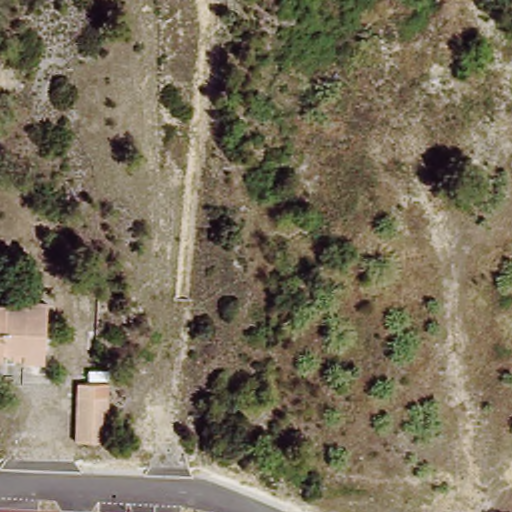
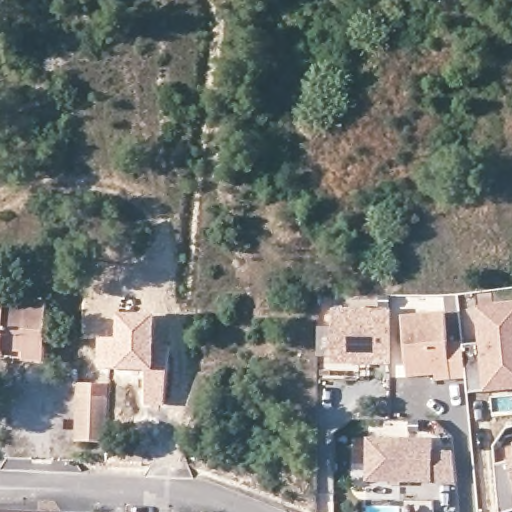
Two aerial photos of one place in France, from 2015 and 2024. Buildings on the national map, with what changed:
unchanged [(20,299),(41,301),(36,358),(11,356),(0,355),(0,305),(17,306),(20,299)]
new [(468,394),(467,378),(437,382),(437,375),(407,377),(403,317),(444,312),(448,347),(480,346),(476,309),(512,305),(512,390),(468,394)]
new [(335,364),(335,309),(391,309),(391,367),(335,364)]
new [(98,335),(113,336),(115,313),(156,314),(154,370),(166,371),(163,406),(143,405),(144,373),(96,368),(98,335)]
unchanged [(101,442),(99,447),(71,444),(75,397),(104,398),(101,442)]
new [(368,439),(434,441),(434,453),(454,454),(453,485),(366,484),(368,439)]
new [(509,461),(512,460),(512,511),(509,512),(499,512),(496,466),(509,461)]

